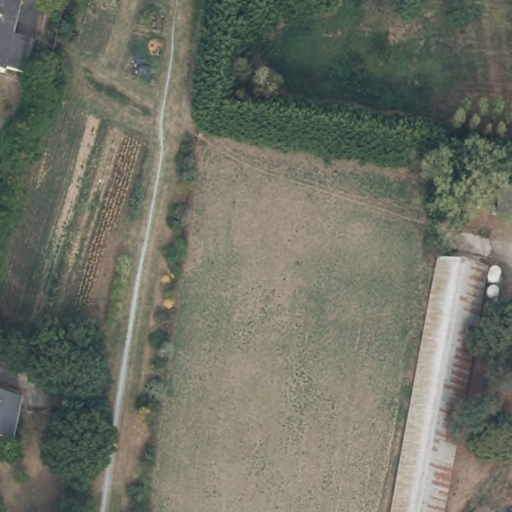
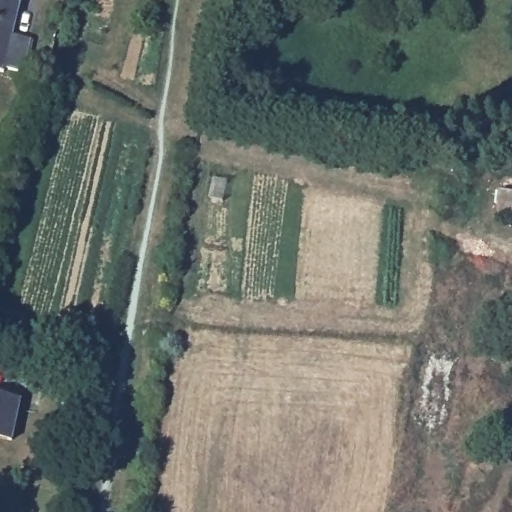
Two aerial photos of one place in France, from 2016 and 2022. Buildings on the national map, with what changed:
unchanged [(30,35),(22,72),(5,68),(4,72),(0,71),(0,0),(20,0),(12,32),(30,35)]
demolished [(512,174),(512,216),(495,213),(494,171),(512,174)]
demolished [(495,269),(493,283),(482,281),(470,345),(462,389),(458,410),(440,512),(391,512),(423,340),(438,259),(495,269)]
new [(21,399),(11,441),(0,439),(0,395),(21,399)]

